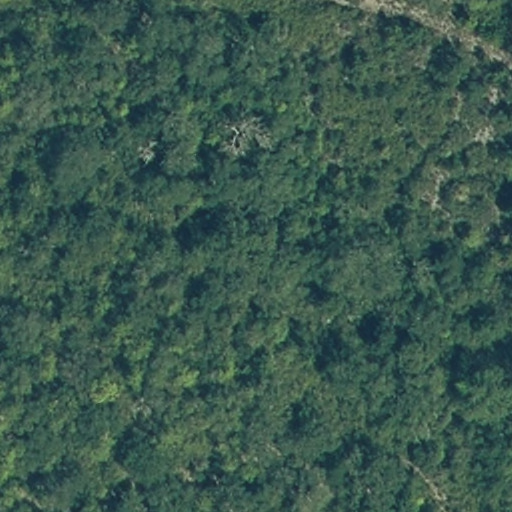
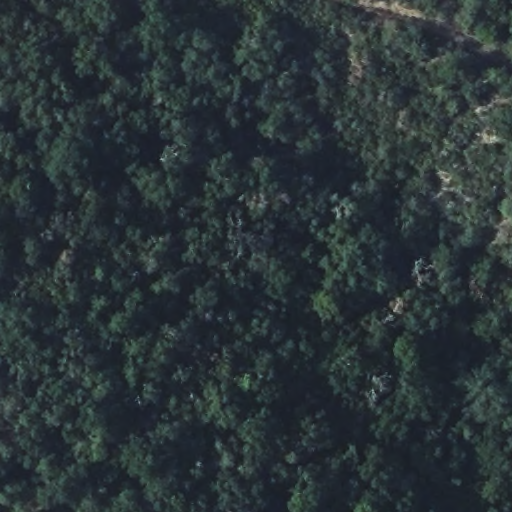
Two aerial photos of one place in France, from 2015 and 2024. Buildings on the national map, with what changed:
[]

